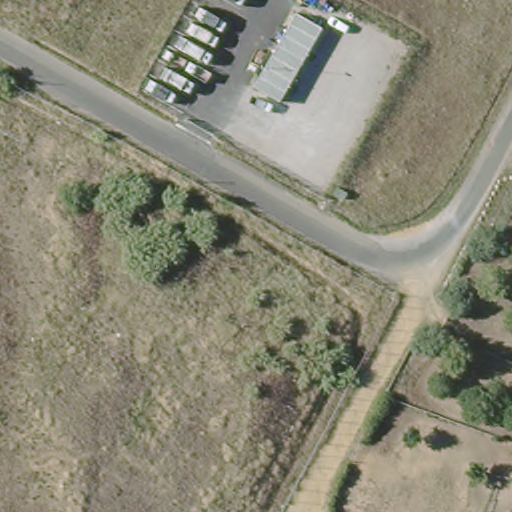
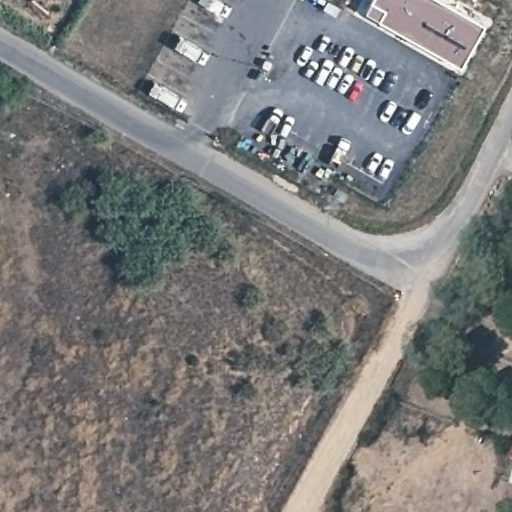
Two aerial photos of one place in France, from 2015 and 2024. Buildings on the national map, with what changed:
new [(380,24),(386,14),(371,6),(374,0),(433,0),(486,31),(462,72),(380,24)]

